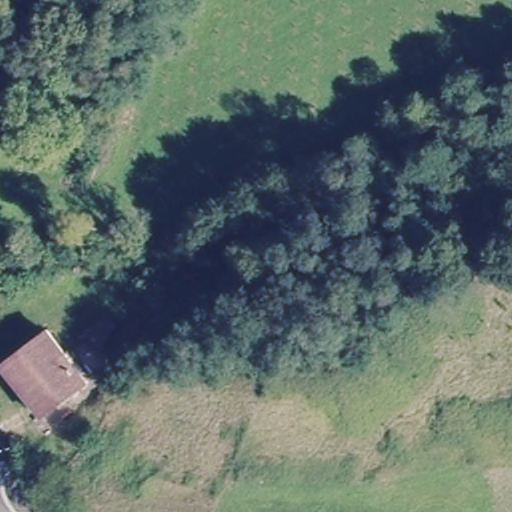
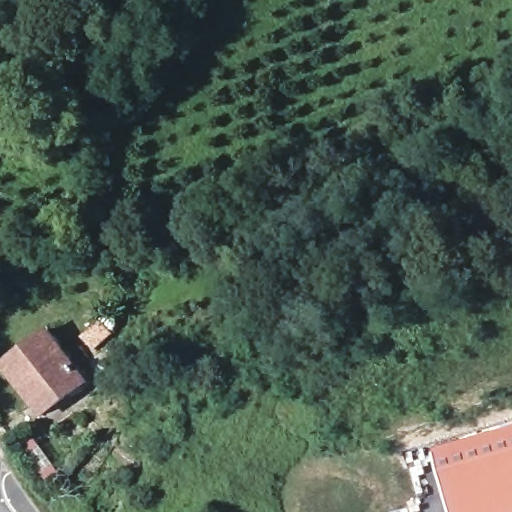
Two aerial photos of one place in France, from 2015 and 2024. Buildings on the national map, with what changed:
unchanged [(0,345),(31,321),(44,337),(2,371),(0,369),(0,345)]
unchanged [(85,387),(42,422),(2,371),(44,337),(85,387)]
new [(512,422),(512,512),(446,512),(442,499),(430,448),(492,428),(512,422)]

